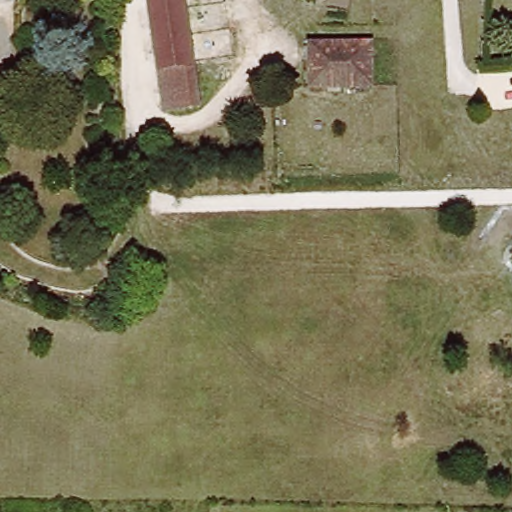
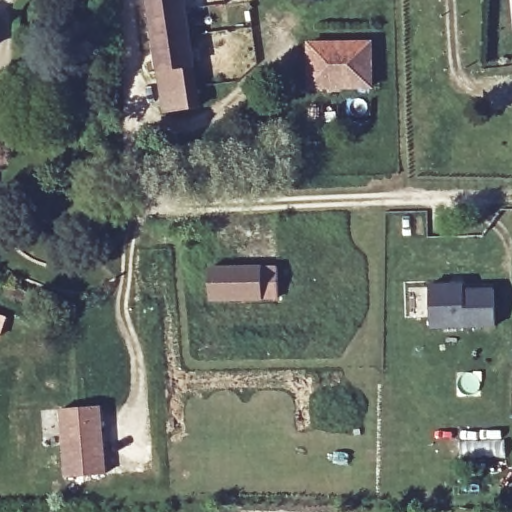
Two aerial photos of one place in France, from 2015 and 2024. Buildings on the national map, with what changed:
unchanged [(185,0),(195,66),(160,71),(150,0),(185,0)]
unchanged [(312,46),(377,44),(378,88),(313,91),(312,46)]
unchanged [(160,71),(195,66),(200,106),(166,111),(160,71)]
new [(277,265),(277,299),(210,301),(210,267),(277,265)]
new [(460,293),(490,292),(492,328),(427,331),(426,320),(407,320),(405,290),(425,290),(425,288),(460,287),(460,293)]
new [(99,408),(103,478),(66,480),(60,410),(99,408)]

